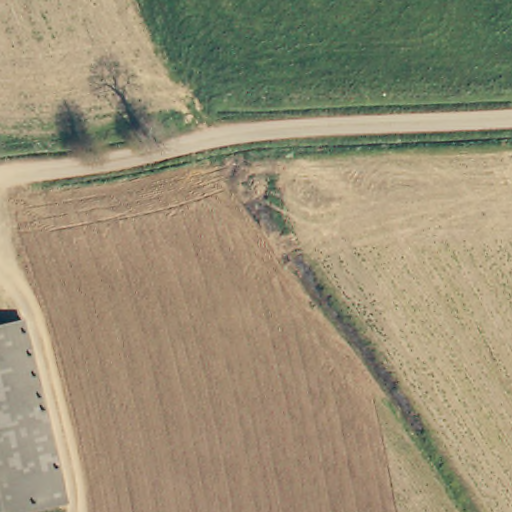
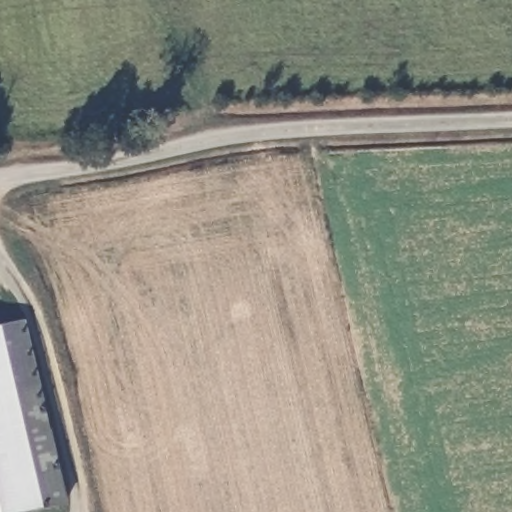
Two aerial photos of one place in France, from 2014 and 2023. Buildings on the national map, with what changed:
unchanged [(22,321),(67,504),(30,512),(0,512),(0,326),(22,321)]

